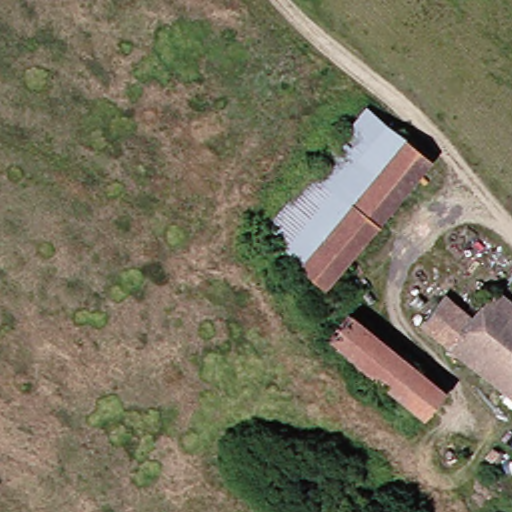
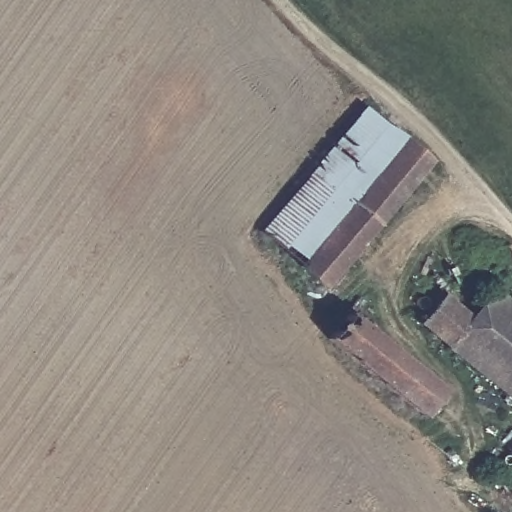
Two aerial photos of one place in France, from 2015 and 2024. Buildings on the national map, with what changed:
unchanged [(422,157),(316,288),(252,231),(357,105),(422,157)]
unchanged [(489,294),(512,312),(512,402),(444,344),(466,319),(489,294)]
unchanged [(444,344),(416,321),(437,295),(466,319),(444,344)]
unchanged [(408,413),(317,337),(340,307),(433,383),(408,413)]

